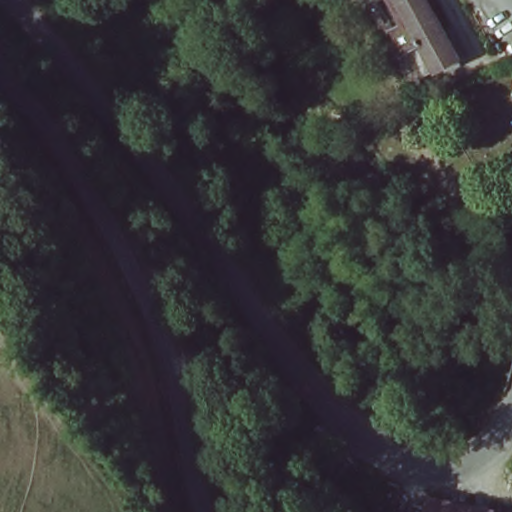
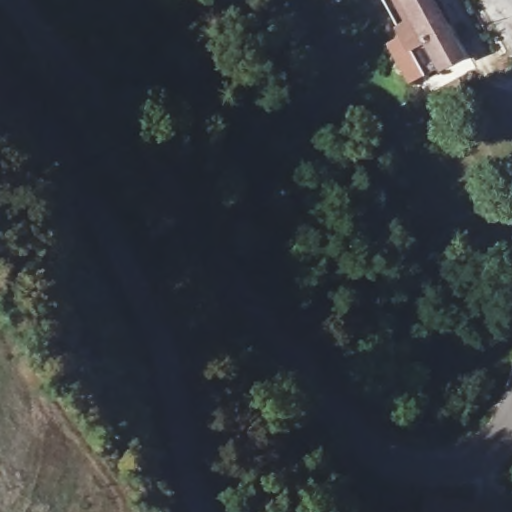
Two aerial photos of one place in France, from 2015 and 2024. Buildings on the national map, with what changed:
unchanged [(434,72),(397,0),(426,0),(457,60),(434,72)]
unchanged [(424,498),(492,511),(491,512),(421,512),(424,498)]

